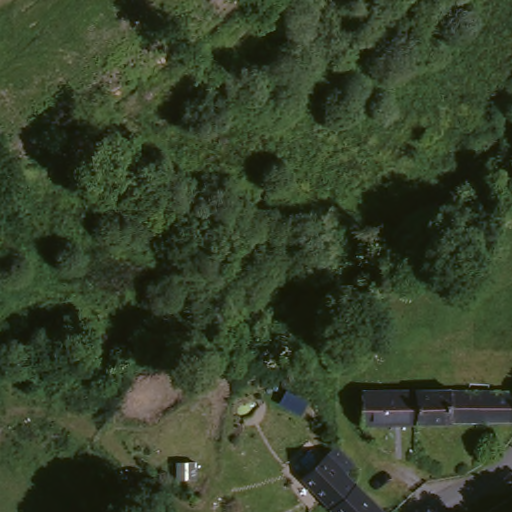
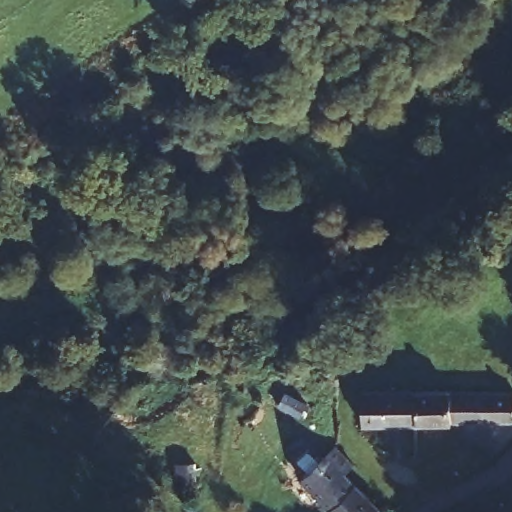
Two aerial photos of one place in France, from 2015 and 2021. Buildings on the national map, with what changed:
unchanged [(331,378),(316,339),(344,328),(359,368),(331,378)]
unchanged [(354,432),(354,398),(383,397),(409,397),(409,432),(354,432)]
unchanged [(477,397),(478,430),(409,432),(409,397),(477,397)]
unchanged [(509,398),(509,431),(478,430),(477,397),(509,398)]
unchanged [(326,452),(327,451),(345,469),(336,477),(337,478),(369,512),(321,512),(294,483),(319,459),(326,452)]

